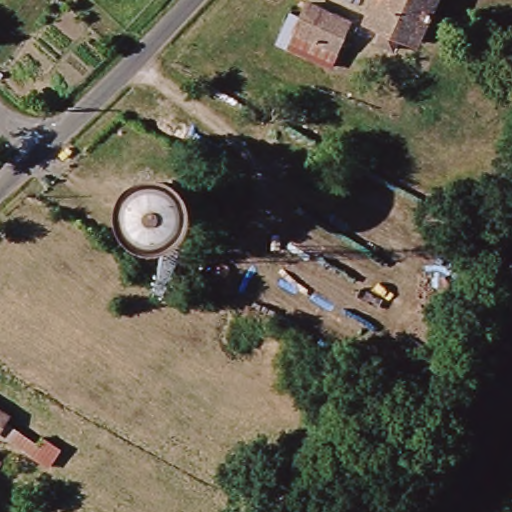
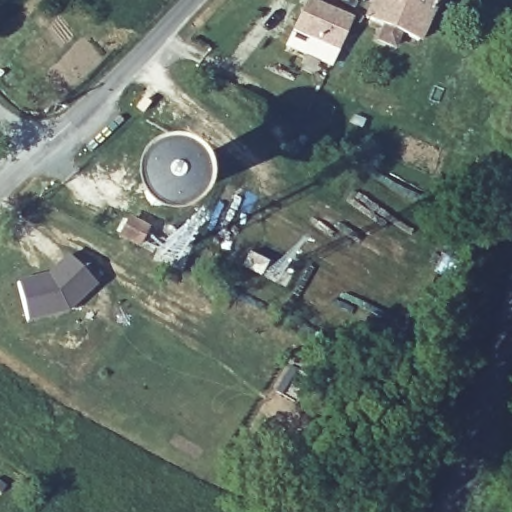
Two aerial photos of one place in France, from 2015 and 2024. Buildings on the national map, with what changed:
unchanged [(352,18),(330,63),(289,43),(309,0),(314,0),(352,18)]
unchanged [(369,20),(370,15),(376,0),(438,0),(421,37),(418,44),(402,36),(396,48),(381,41),(386,29),(369,20)]
new [(66,313),(28,322),(18,281),(46,274),(66,255),(95,284),(66,313)]
demolished [(9,417),(5,423),(34,444),(27,455),(0,437),(0,411),(9,417)]

